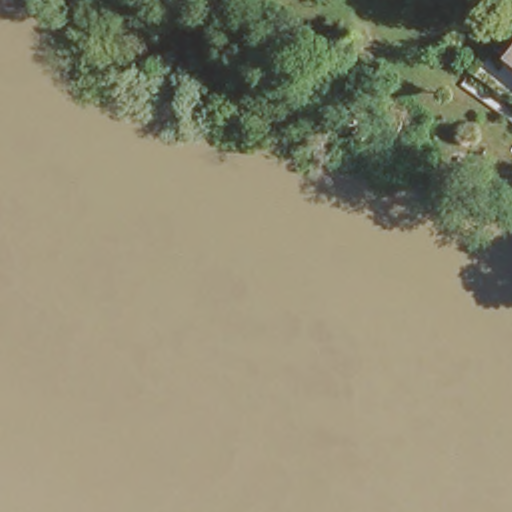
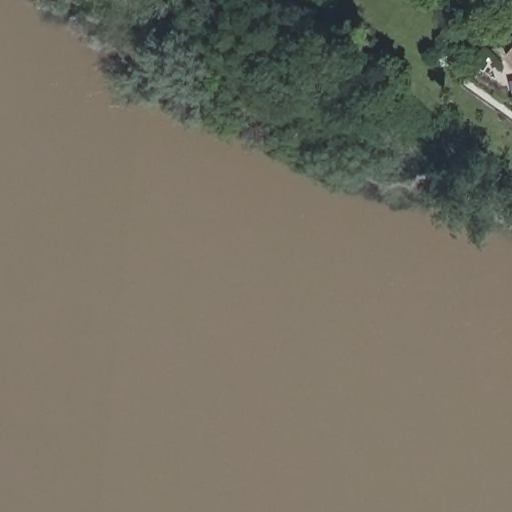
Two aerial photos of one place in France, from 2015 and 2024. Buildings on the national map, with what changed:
unchanged [(512,41),(512,55),(506,50),(512,41)]

